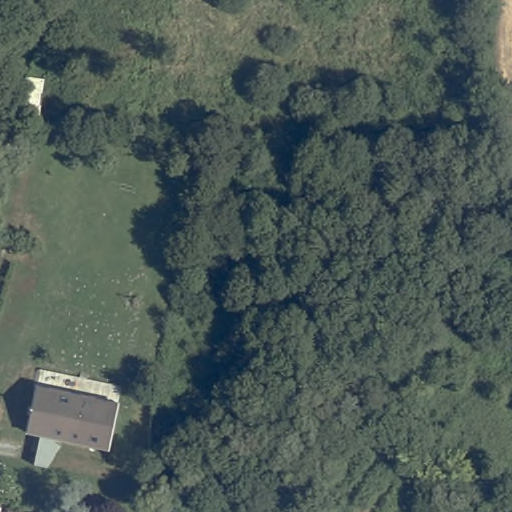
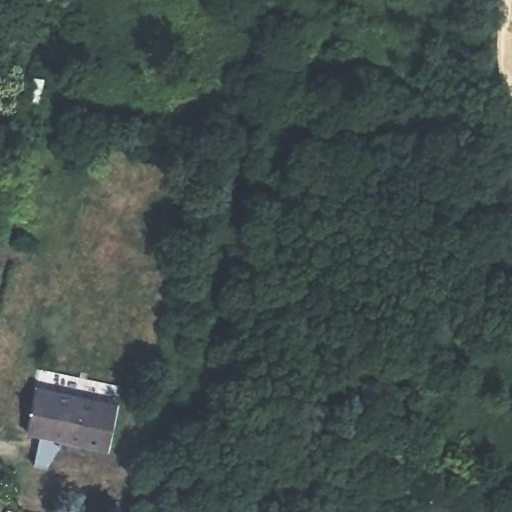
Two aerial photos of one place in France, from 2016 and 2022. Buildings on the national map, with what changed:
unchanged [(38,116),(23,114),(29,77),(43,80),(38,116)]
unchanged [(107,450),(26,433),(36,387),(116,404),(107,450)]
unchanged [(5,512),(0,512),(0,507),(6,508),(5,512)]

